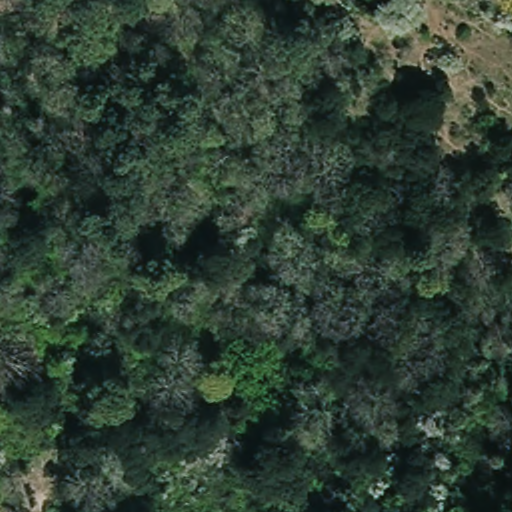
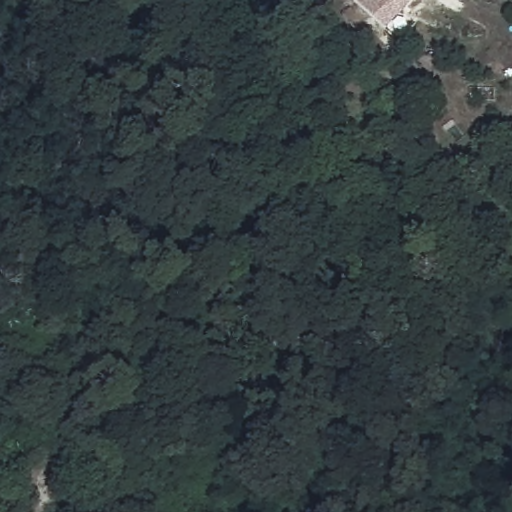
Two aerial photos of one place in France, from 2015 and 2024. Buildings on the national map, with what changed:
new [(417,0),(388,32),(352,0),(353,0),(417,0)]

